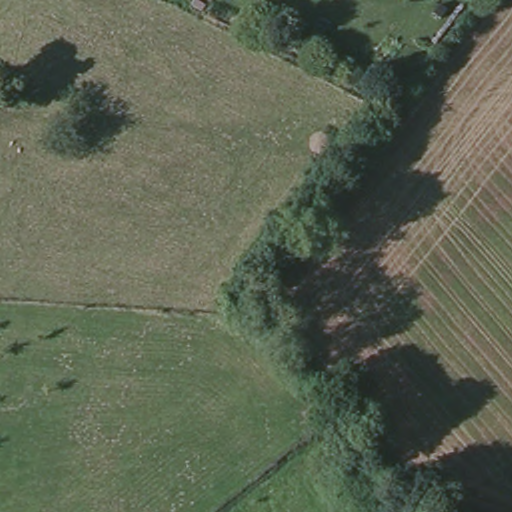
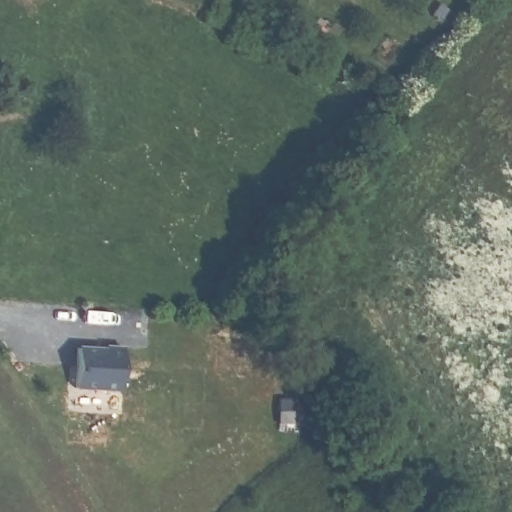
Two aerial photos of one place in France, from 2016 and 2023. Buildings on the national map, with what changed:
new [(80,351),(110,355),(109,348),(125,351),(122,393),(77,390),(80,351)]
new [(280,402),(294,403),(293,426),(279,425),(280,402)]

